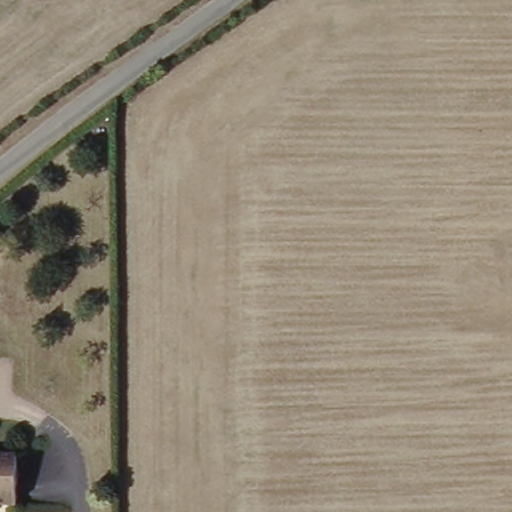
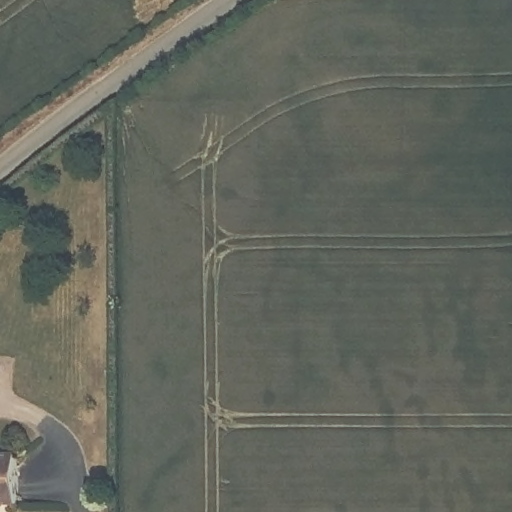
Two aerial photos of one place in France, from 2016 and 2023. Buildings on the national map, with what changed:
unchanged [(17,508),(0,508),(0,459),(17,459),(17,508)]

